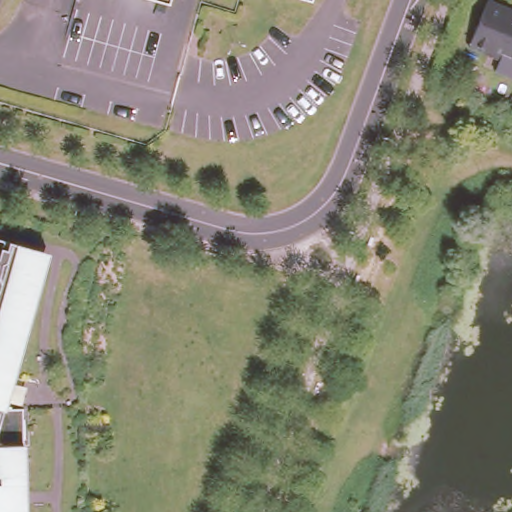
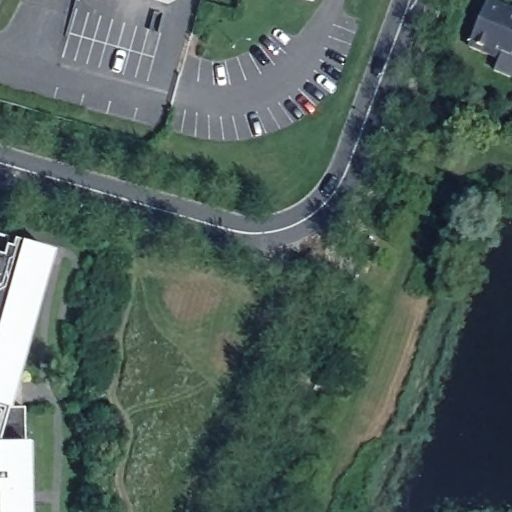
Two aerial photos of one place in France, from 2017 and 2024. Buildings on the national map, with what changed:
unchanged [(164,0),(168,0),(168,1),(164,0)]
unchanged [(301,0),(313,0),(312,3),(301,0)]
unchanged [(498,53),(467,40),(483,0),(502,0),(512,4),(512,73),(493,65),(498,53)]
unchanged [(38,267),(0,403),(0,257),(38,267)]
unchanged [(18,405),(18,450),(5,446),(0,466),(0,405),(18,405)]
unchanged [(20,500),(21,512),(0,512),(0,495),(20,500)]

